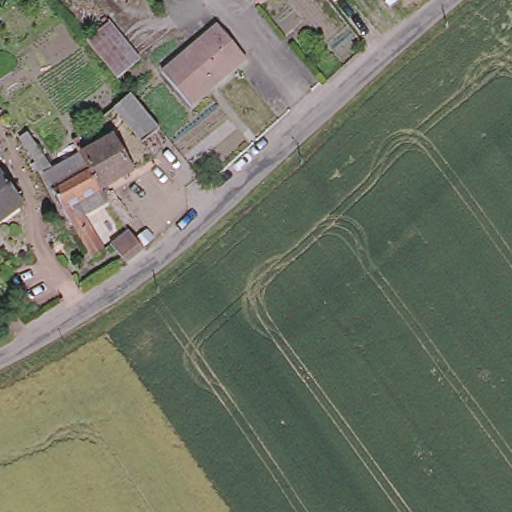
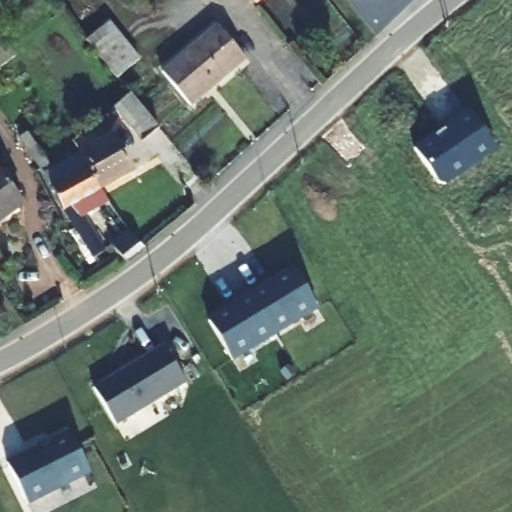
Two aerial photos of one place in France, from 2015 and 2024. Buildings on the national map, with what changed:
unchanged [(247,0),(268,0),(256,10),(247,0)]
new [(111,20),(142,60),(118,79),(87,39),(111,20)]
unchanged [(218,27),(245,60),(214,86),(211,84),(200,93),(203,97),(192,107),(163,73),(218,27)]
unchanged [(159,119),(141,132),(114,100),(132,85),(159,119)]
new [(468,109),(497,151),(447,184),(438,182),(415,147),(468,109)]
unchanged [(92,140),(98,151),(119,139),(126,150),(133,160),(94,184),(73,150),(92,140)]
unchanged [(100,195),(77,209),(99,245),(86,252),(61,210),(44,182),(37,171),(71,152),(73,150),(94,184),(100,195)]
unchanged [(25,211),(0,230),(0,172),(28,209),(25,211)]
unchanged [(130,244),(116,255),(102,238),(118,225),(130,244)]
new [(209,319),(292,265),(319,308),(234,360),(209,319)]
new [(94,387),(164,345),(187,381),(118,425),(94,387)]
new [(9,461),(70,430),(91,472),(30,504),(9,461)]

